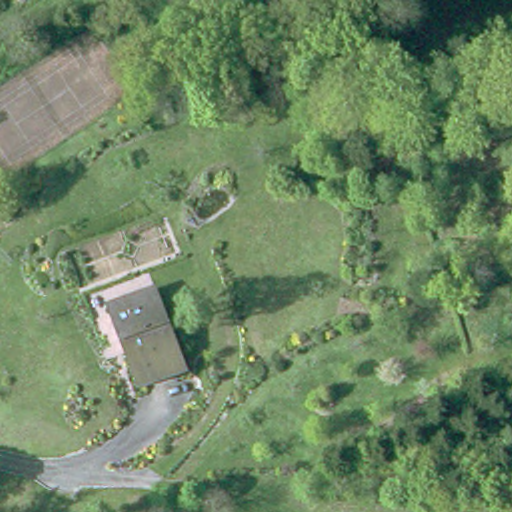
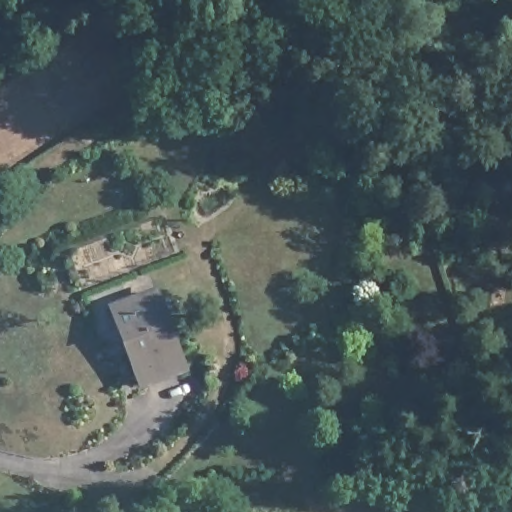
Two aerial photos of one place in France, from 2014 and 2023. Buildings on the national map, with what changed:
unchanged [(124,351),(113,315),(141,305),(158,300),(168,332),(182,375),(145,388),(133,350),(124,351)]

